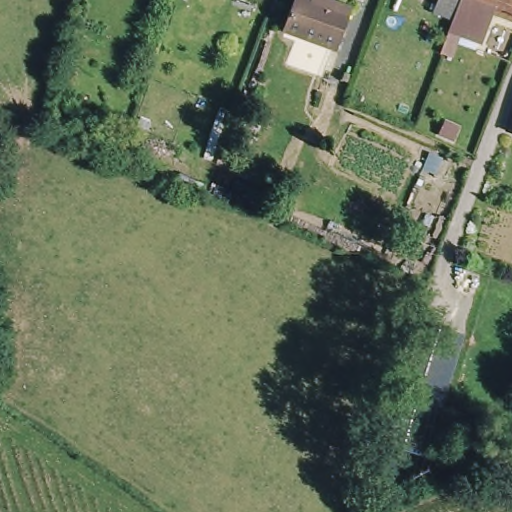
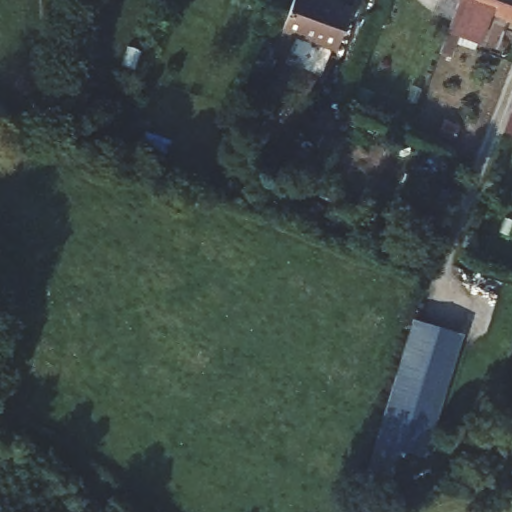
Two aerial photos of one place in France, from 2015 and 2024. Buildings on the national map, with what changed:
unchanged [(298,0),(334,0),(340,2),(340,0),(347,0),(359,4),(344,44),(340,42),(329,68),(293,54),(303,29),(289,23),(298,0)]
unchanged [(462,20),(440,12),(444,0),(470,0),(462,20)]
unchanged [(512,18),(502,14),(488,9),(481,28),(462,20),(470,0),(512,0),(512,18)]
unchanged [(462,20),(481,28),(488,9),(502,14),(488,49),(469,42),(463,56),(450,51),(462,20)]
unchanged [(512,116),(512,138),(505,135),(512,116)]
new [(391,478),(367,470),(412,319),(464,334),(427,457),(400,449),(391,478)]

